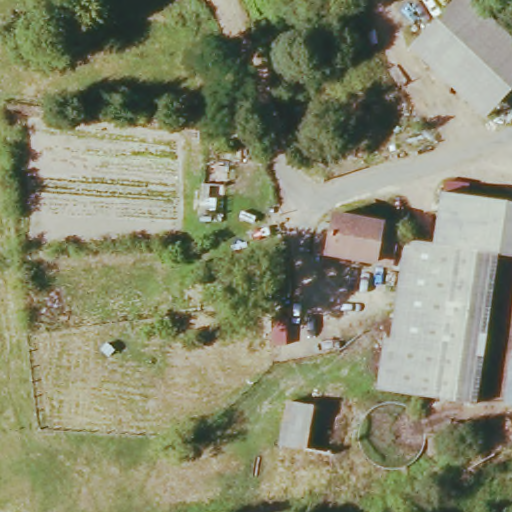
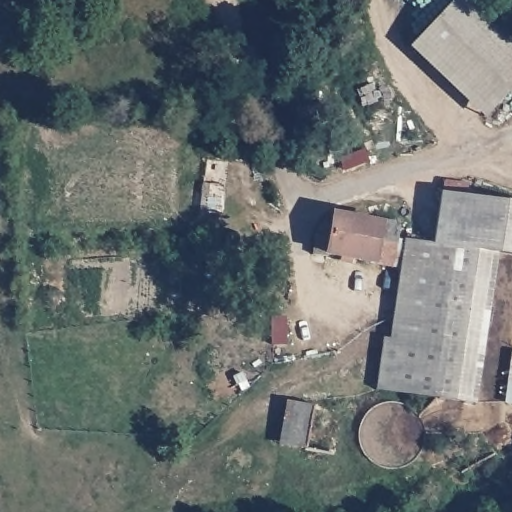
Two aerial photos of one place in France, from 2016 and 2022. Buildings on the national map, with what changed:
unchanged [(486,122),(409,51),(456,0),(471,0),(512,39),(512,94),(486,122)]
unchanged [(480,404),(384,389),(390,340),(398,340),(408,269),(328,256),(317,254),(323,222),(334,224),(336,214),(404,226),(402,241),(439,246),(446,196),(512,206),(512,256),(501,254),(480,404)]
unchanged [(282,312),(281,350),(272,349),(273,312),(282,312)]
unchanged [(512,392),(512,403),(511,403),(512,392)]
unchanged [(309,452),(284,447),(291,402),(317,407),(309,452)]
unchanged [(317,405),(343,410),(335,457),(309,455),(309,452),(317,407),(317,405)]

